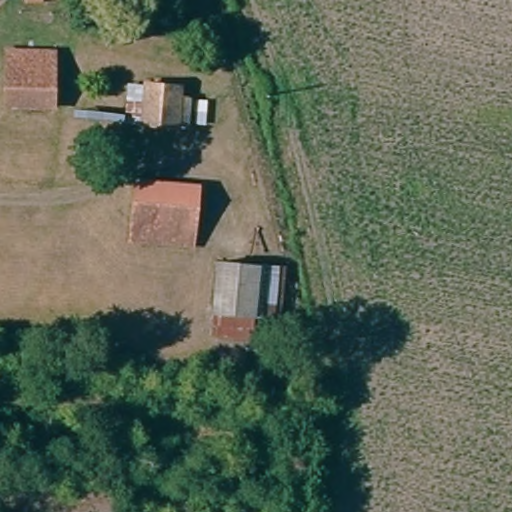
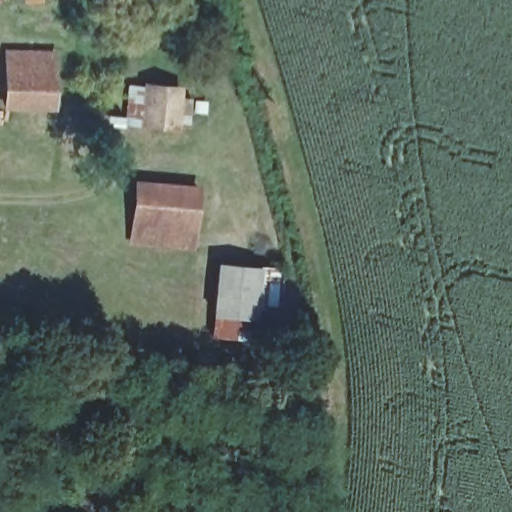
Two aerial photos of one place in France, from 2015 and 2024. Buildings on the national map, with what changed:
unchanged [(22,7),(22,0),(41,0),(22,7)]
unchanged [(45,107),(2,106),(3,52),(46,53),(45,107)]
unchanged [(177,97),(188,98),(186,131),(120,124),(123,80),(178,85),(177,97)]
unchanged [(133,184),(194,194),(188,231),(128,223),(133,184)]
unchanged [(185,250),(125,241),(128,223),(188,231),(185,250)]
unchanged [(276,325),(254,323),(251,342),(206,336),(206,316),(210,259),(256,264),(281,266),(276,325)]

